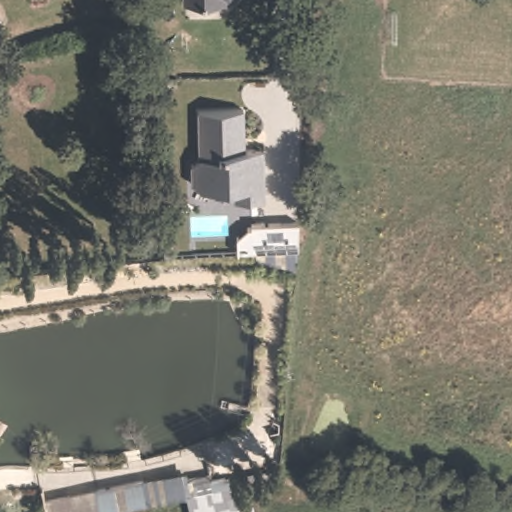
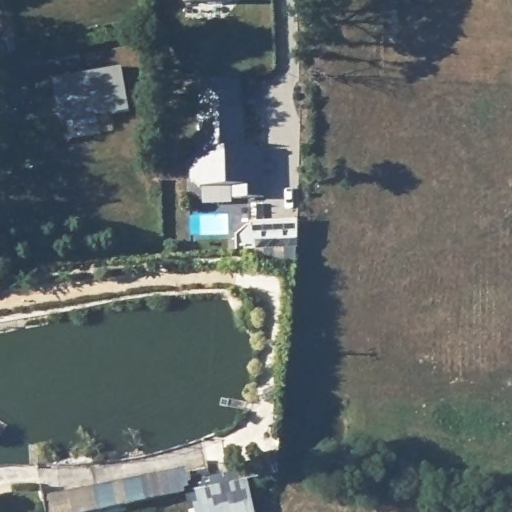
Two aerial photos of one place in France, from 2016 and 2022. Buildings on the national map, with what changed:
unchanged [(187,6),(187,0),(240,0),(237,3),(187,6)]
new [(120,65),(129,110),(60,122),(50,77),(120,65)]
unchanged [(240,112),(240,151),(260,151),(260,201),(230,201),(230,188),(195,189),(187,183),(187,163),(195,157),(195,112),(240,112)]
unchanged [(273,260),(272,250),(254,250),(253,222),(298,220),(298,247),(296,248),(297,258),(273,260)]
unchanged [(256,512),(189,512),(185,493),(185,492),(235,482),(234,472),(278,462),(278,472),(257,478),(250,481),(256,512)]
unchanged [(141,476),(147,500),(88,512),(46,512),(42,497),(141,476)]

